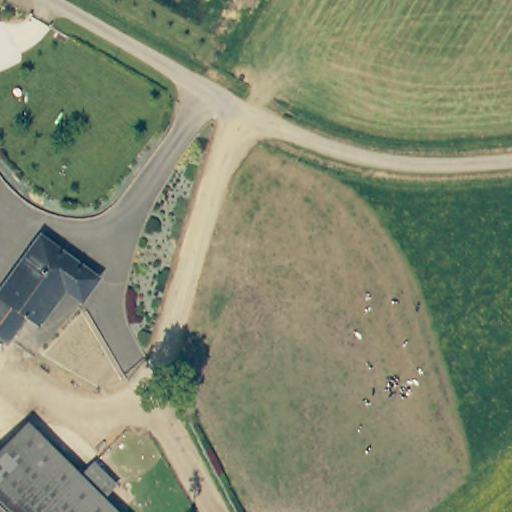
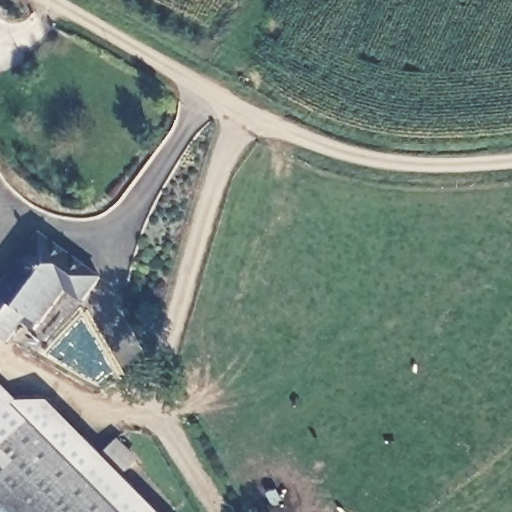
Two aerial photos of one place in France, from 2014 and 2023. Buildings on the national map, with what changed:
unchanged [(64,293),(39,329),(38,328),(33,335),(22,326),(6,347),(0,343),(0,296),(40,240),(98,282),(81,305),(64,293)]
new [(18,401),(50,401),(104,455),(118,440),(140,460),(125,477),(160,512),(112,512),(102,502),(115,489),(93,467),(85,476),(81,472),(76,476),(27,428),(0,455),(0,382),(18,401)]
unchanged [(27,428),(76,476),(81,472),(85,476),(93,467),(115,489),(102,502),(112,512),(0,512),(0,455),(27,428)]

